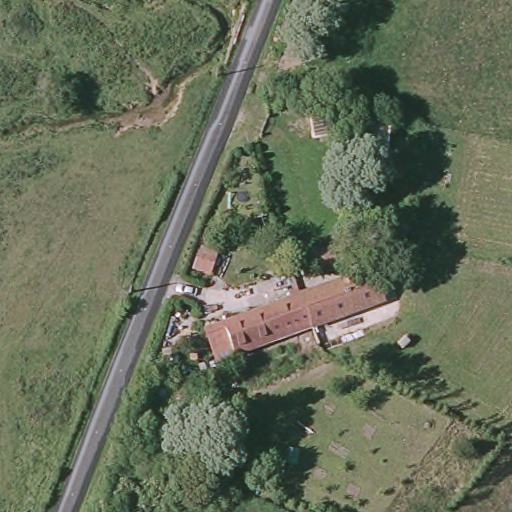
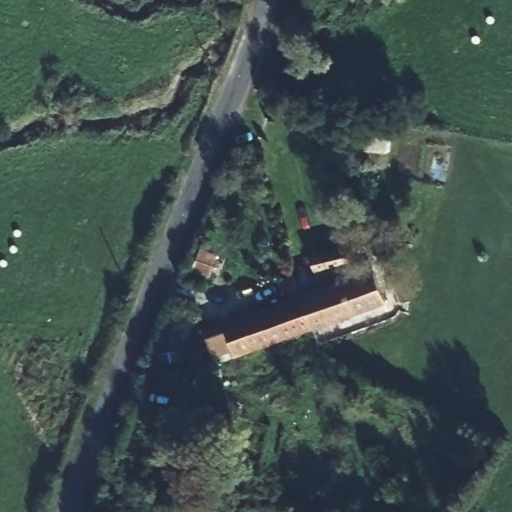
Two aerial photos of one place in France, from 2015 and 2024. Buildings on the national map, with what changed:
unchanged [(346,228),(349,239),(345,240),(346,243),(337,246),(333,231),(346,228)]
unchanged [(310,271),(305,256),(337,246),(342,261),(310,271)]
unchanged [(363,265),(378,300),(304,328),(292,292),(363,265)]
unchanged [(206,325),(292,292),(304,328),(229,357),(222,354),(217,355),(206,325)]

